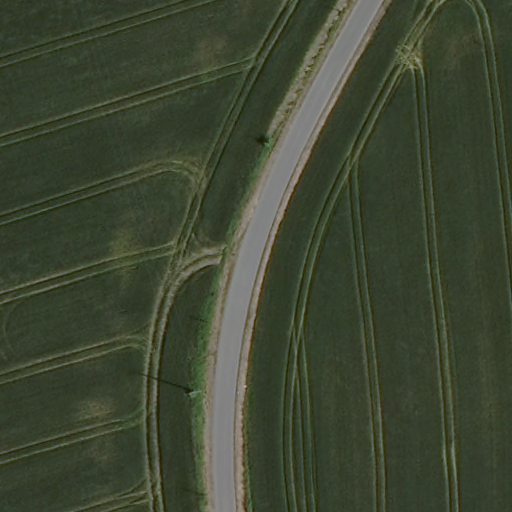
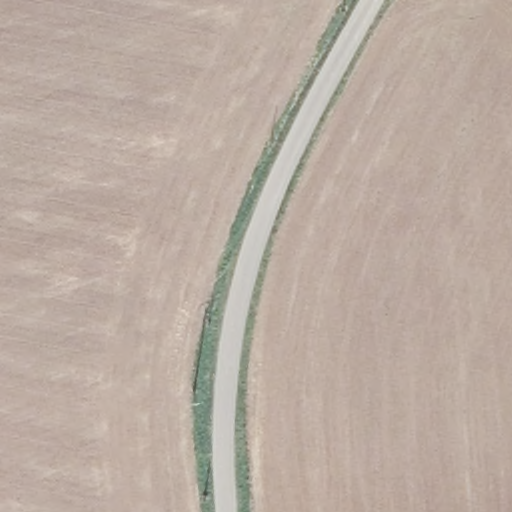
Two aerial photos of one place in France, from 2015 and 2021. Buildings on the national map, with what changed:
[]

